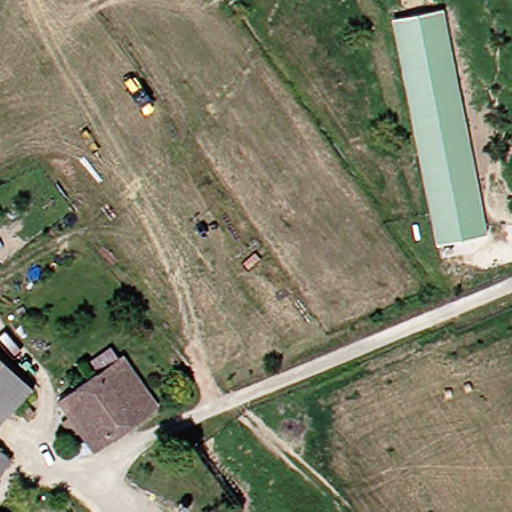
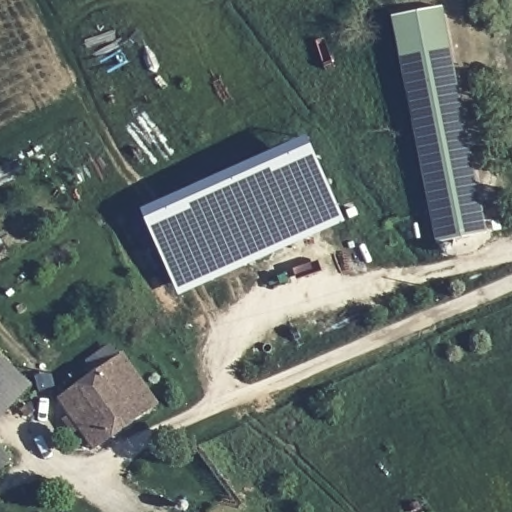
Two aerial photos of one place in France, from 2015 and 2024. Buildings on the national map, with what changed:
unchanged [(442,5),(488,232),(439,240),(395,14),(442,5)]
new [(309,138),(344,221),(179,296),(144,210),(309,138)]
unchanged [(58,425),(63,420),(51,403),(86,375),(79,367),(100,350),(106,360),(111,357),(151,405),(89,452),(73,432),(66,436),(58,425)]
unchanged [(0,416),(0,366),(26,391),(0,416)]
unchanged [(0,466),(0,462),(2,464),(0,466)]

